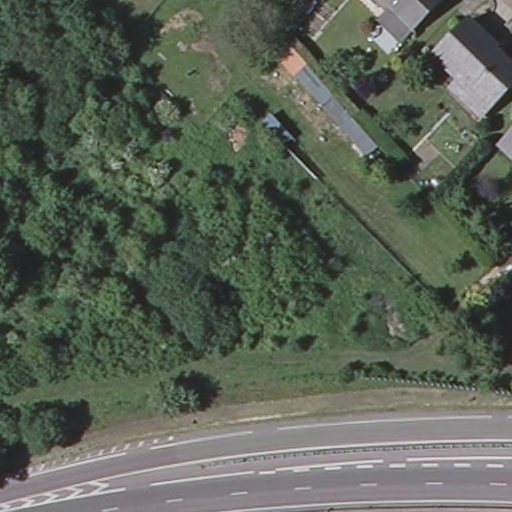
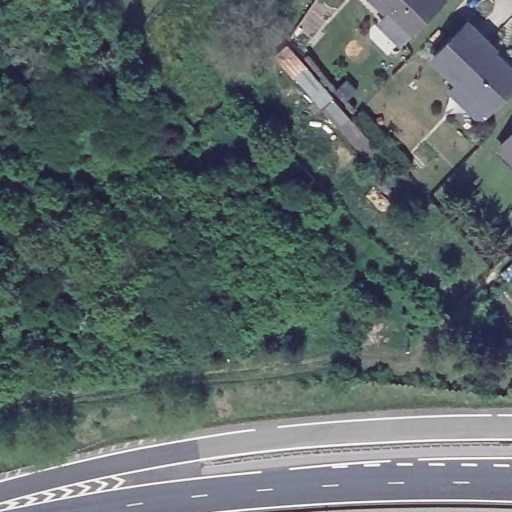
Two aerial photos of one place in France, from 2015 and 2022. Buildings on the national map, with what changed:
unchanged [(384,9),(375,0),(435,0),(406,30),(396,40),(374,20),(384,9)]
unchanged [(455,80),(431,56),(467,20),(496,49),(493,51),(512,69),(512,82),(487,109),(479,116),(449,87),(455,80)]
unchanged [(512,130),(512,157),(499,145),(512,130)]

